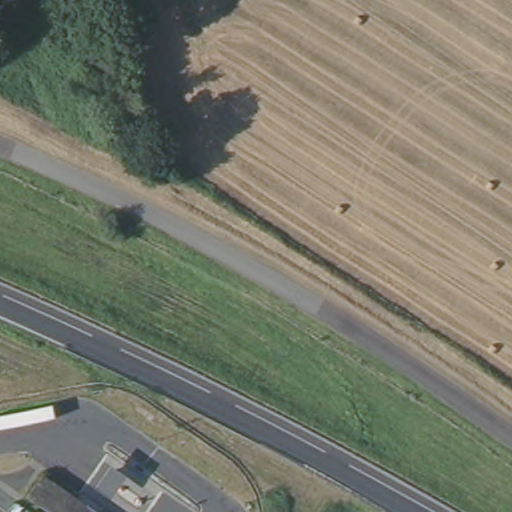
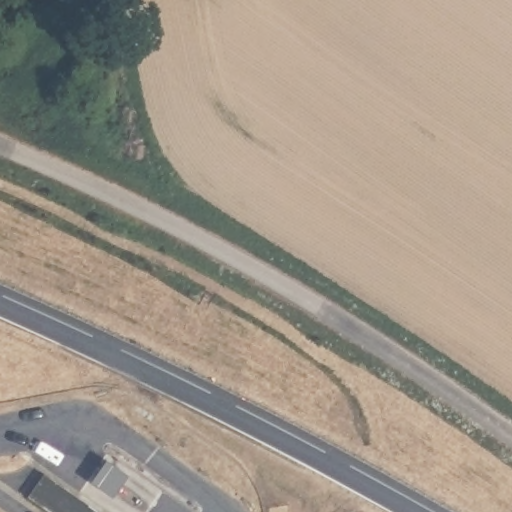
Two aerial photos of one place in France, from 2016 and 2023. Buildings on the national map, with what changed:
unchanged [(45,476),(71,494),(61,508),(35,491),(45,476)]

